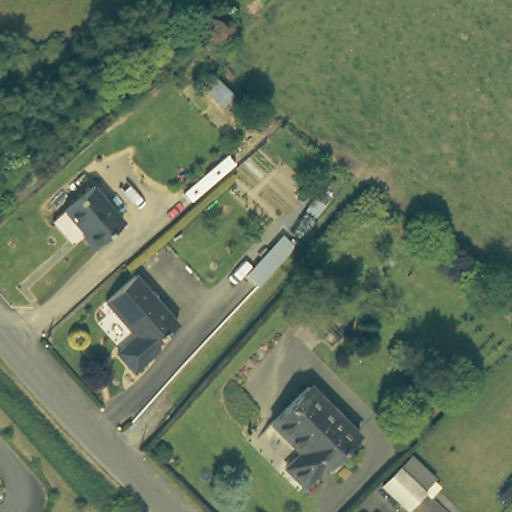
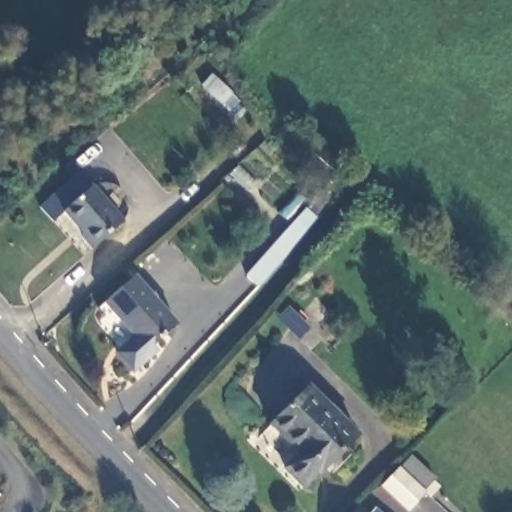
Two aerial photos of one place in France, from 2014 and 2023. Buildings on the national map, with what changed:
unchanged [(57,217),(70,205),(96,182),(129,219),(101,245),(89,232),(78,241),(57,217)]
unchanged [(183,318),(145,353),(103,306),(141,272),(183,318)]
unchanged [(363,432),(324,471),(319,465),(299,486),(255,443),(314,384),(363,432)]
unchanged [(411,510),(386,485),(406,466),(419,453),(440,475),(427,488),(430,491),(411,510)]

